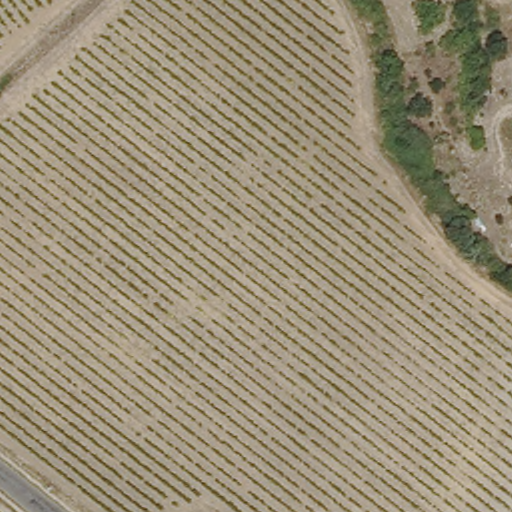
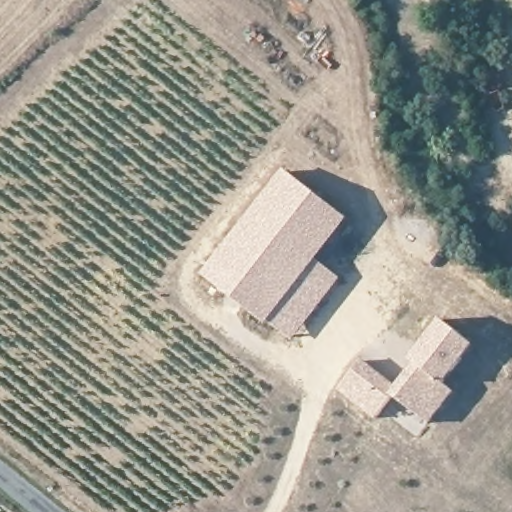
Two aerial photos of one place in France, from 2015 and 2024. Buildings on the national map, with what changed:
new [(346,217),(268,318),(209,273),(285,172),(346,217)]
new [(364,359),(398,384),(414,362),(410,359),(442,320),(475,346),(447,383),(457,391),(429,425),(392,396),(375,421),(338,392),(364,359)]

